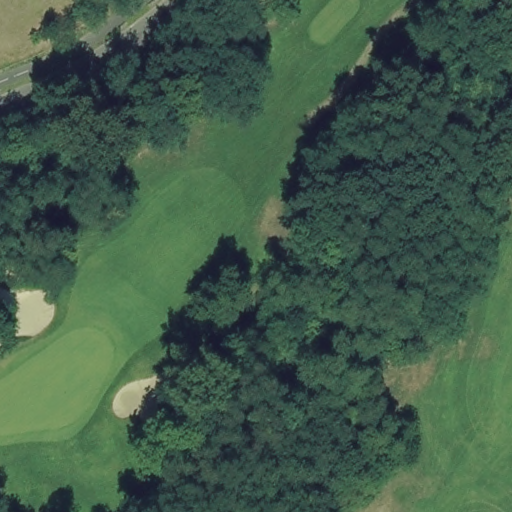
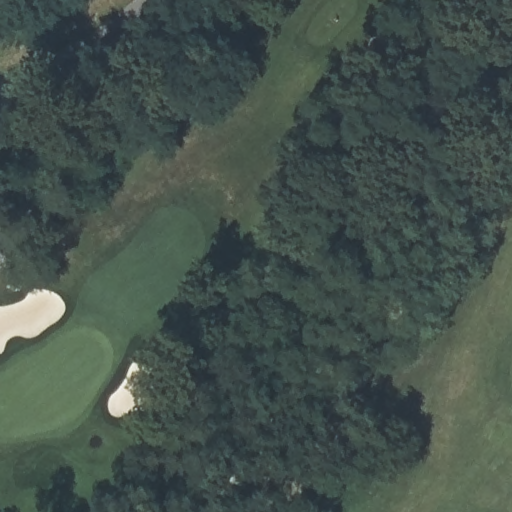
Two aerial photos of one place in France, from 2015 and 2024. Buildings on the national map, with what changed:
[]

